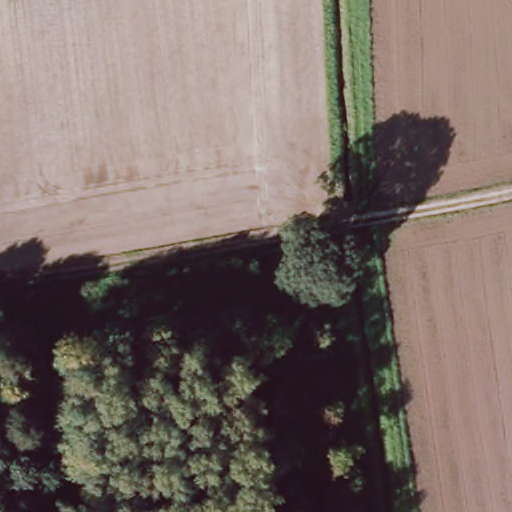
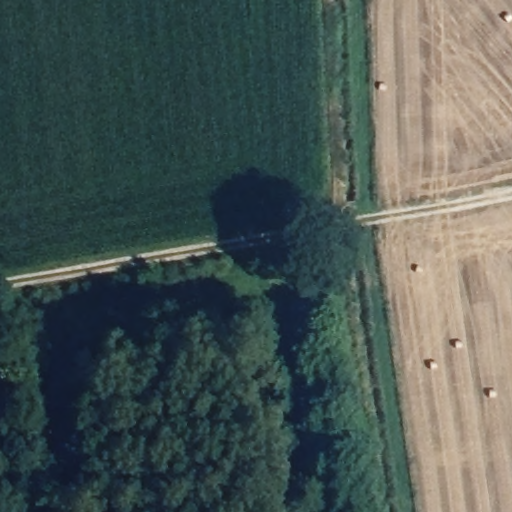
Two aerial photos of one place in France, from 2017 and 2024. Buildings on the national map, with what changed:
[]

